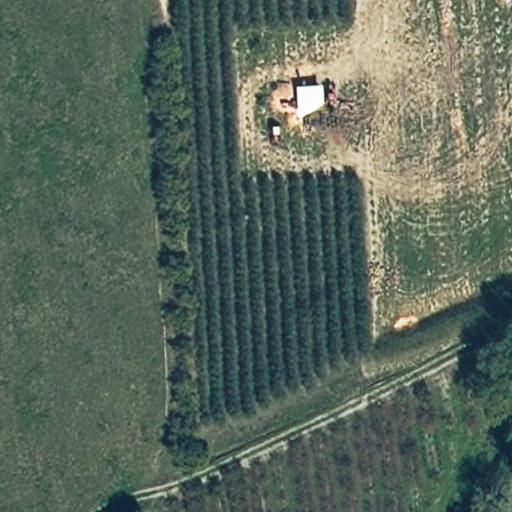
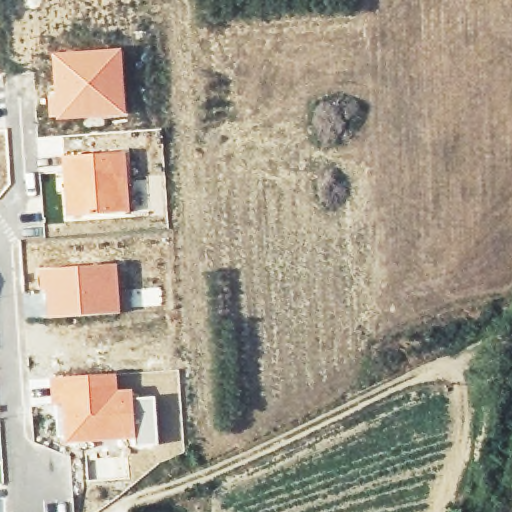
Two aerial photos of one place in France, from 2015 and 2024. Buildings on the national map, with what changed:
new [(54,92),(52,52),(122,47),(127,116),(50,119),(48,93),(54,92)]
new [(2,75),(0,77),(0,74),(2,75)]
new [(62,155),(62,157),(37,159),(36,136),(62,135),(62,155)]
new [(131,212),(65,216),(62,155),(127,150),(131,212)]
new [(40,292),(40,269),(117,263),(121,313),(46,318),(24,318),(22,293),(40,292)]
new [(117,372),(119,389),(134,388),(135,397),(135,440),(59,445),(49,377),(117,372)]
new [(156,396),(160,445),(135,447),(135,440),(135,397),(156,396)]

